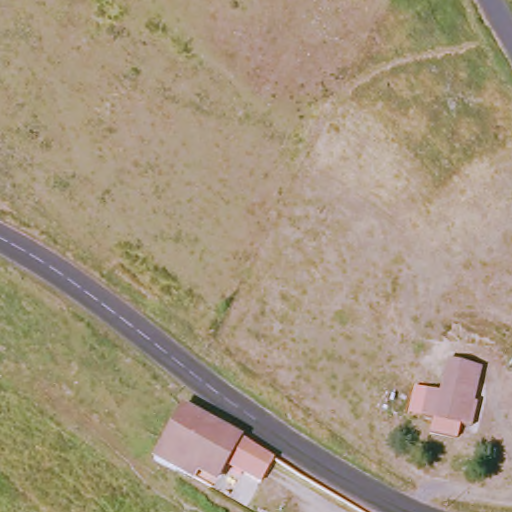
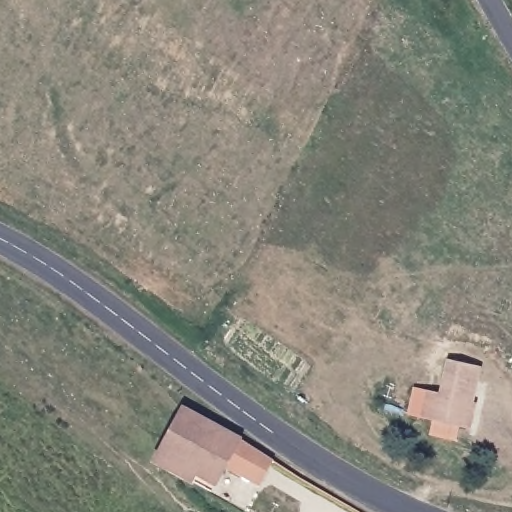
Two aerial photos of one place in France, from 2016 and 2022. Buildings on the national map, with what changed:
unchanged [(455,423),(419,415),(425,388),(441,392),(447,358),(477,364),(474,379),(464,425),(455,423)]
unchanged [(186,404),(207,417),(278,458),(264,482),(229,462),(219,480),(200,469),(196,479),(174,467),(157,457),(161,447),(166,437),(168,438),(186,404)]

